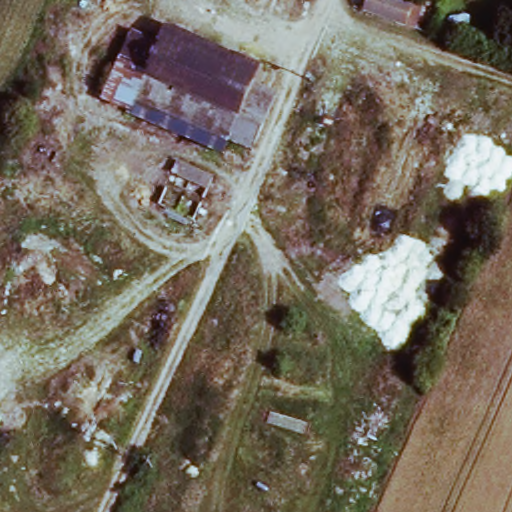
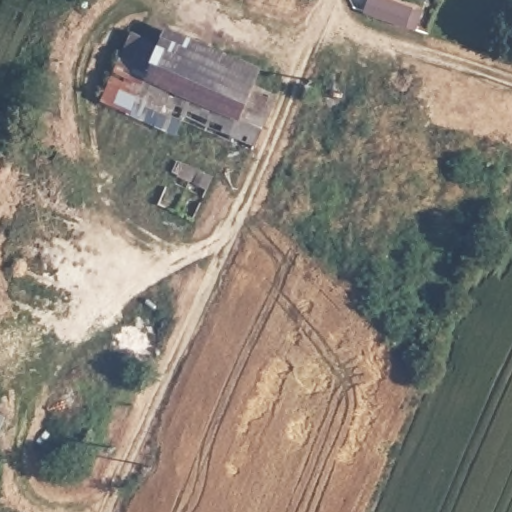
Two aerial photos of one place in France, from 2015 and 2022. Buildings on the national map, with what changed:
unchanged [(378,0),(398,0),(423,7),(421,16),(418,26),(374,12),(377,1),(378,0)]
unchanged [(230,139),(220,151),(134,115),(104,101),(133,32),(160,38),(166,23),(265,67),(255,84),(280,92),(253,148),(230,139)]
unchanged [(4,419),(0,428),(0,418),(4,419)]

